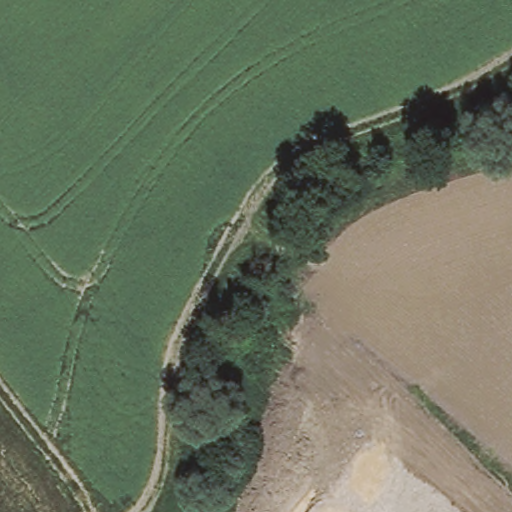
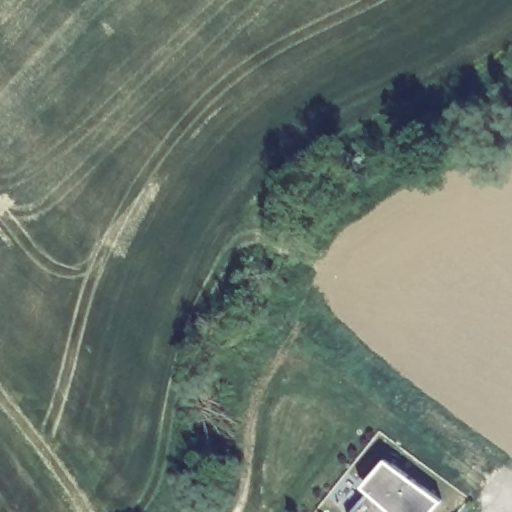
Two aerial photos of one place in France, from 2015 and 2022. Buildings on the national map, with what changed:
new [(441,503),(433,512),(353,512),(392,465),(441,503)]

